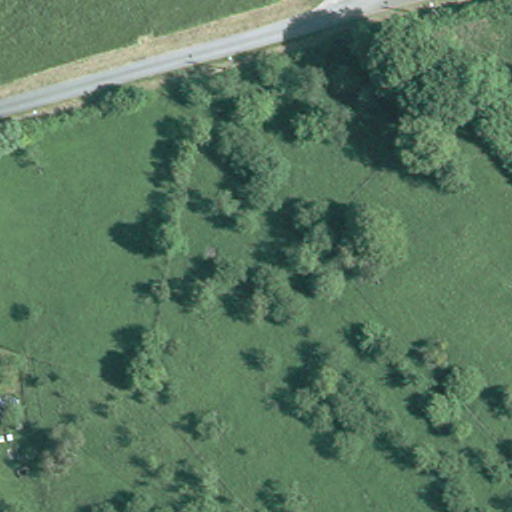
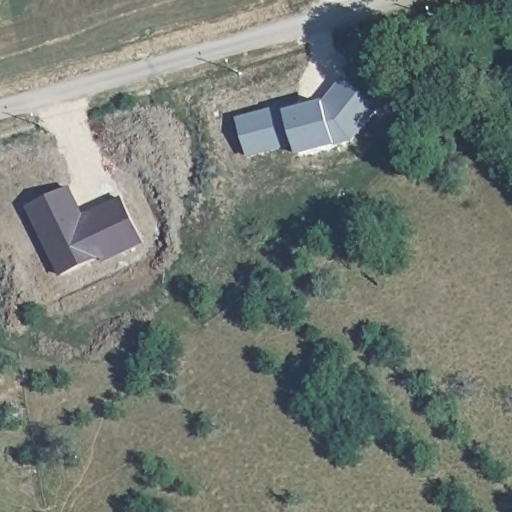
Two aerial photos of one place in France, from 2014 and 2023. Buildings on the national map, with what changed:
new [(293,103),(293,109),(325,100),(345,76),(380,106),(352,141),(337,145),(298,155),(295,144),(250,157),(238,119),(293,103)]
new [(68,187),(85,221),(94,217),(91,212),(120,198),(142,241),(102,260),(100,255),(60,274),(28,206),(68,187)]

